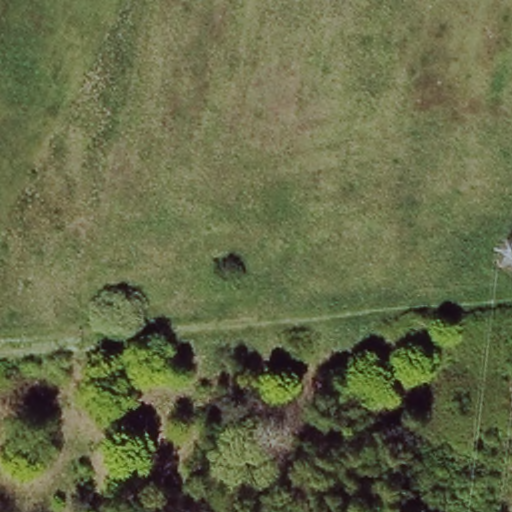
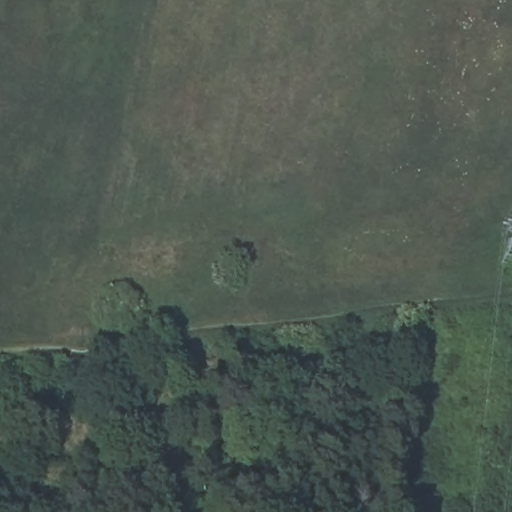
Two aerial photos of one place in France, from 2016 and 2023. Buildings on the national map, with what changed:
[]

